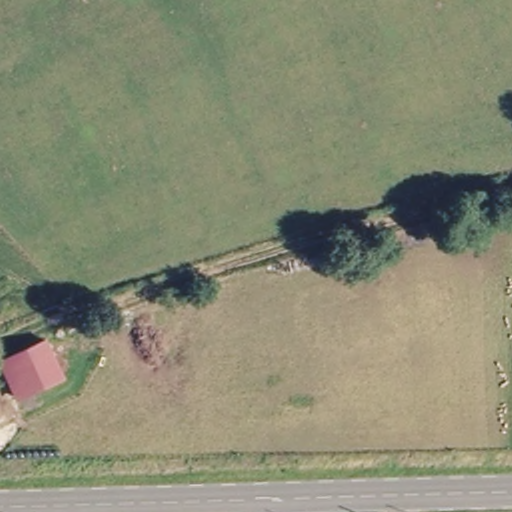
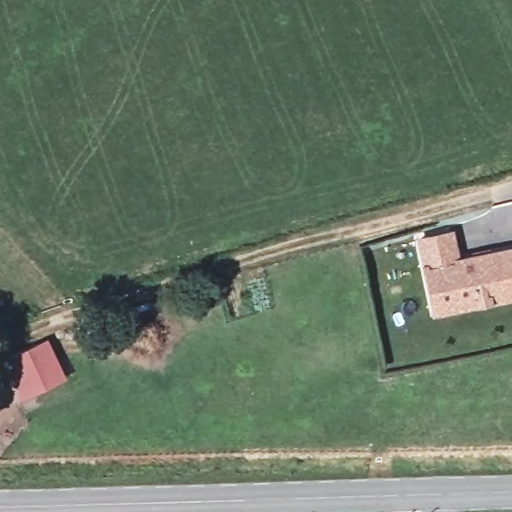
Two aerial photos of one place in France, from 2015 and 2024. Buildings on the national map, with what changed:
new [(453,229),(458,256),(512,244),(512,299),(433,315),(417,239),(453,229)]
unchanged [(51,341),(67,377),(16,397),(5,365),(51,341)]

